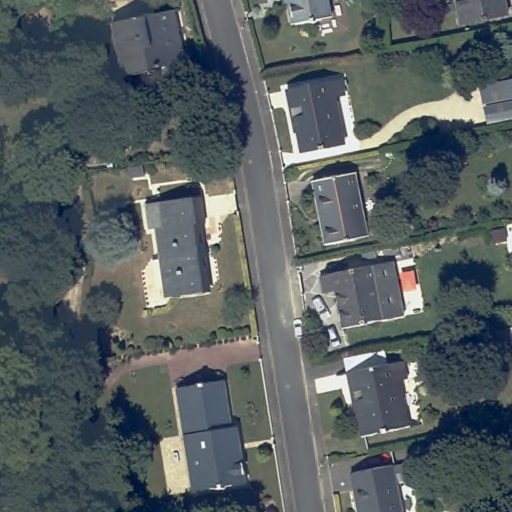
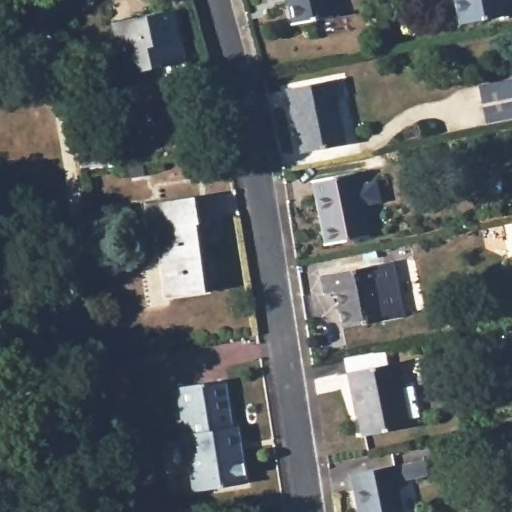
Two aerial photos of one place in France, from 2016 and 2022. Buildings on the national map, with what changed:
unchanged [(294,22),(289,0),(328,0),(331,15),(294,22)]
unchanged [(460,21),(456,0),(505,0),(508,11),(460,21)]
unchanged [(185,74),(162,80),(159,66),(124,74),(114,22),(172,10),(178,40),(182,62),(185,74)]
unchanged [(342,79),(345,95),(335,96),(344,144),(302,152),(298,132),(296,133),(288,89),(342,79)]
unchanged [(512,97),(483,103),(480,86),(512,81),(512,97)]
unchanged [(512,115),(487,120),(484,107),(512,102),(512,115)]
unchanged [(131,155),(132,163),(118,164),(117,156),(131,155)]
unchanged [(142,169),(142,176),(129,177),(128,170),(142,169)]
unchanged [(355,174),(367,236),(326,244),(314,181),(355,174)]
unchanged [(156,228),(149,229),(146,203),(201,197),(204,222),(200,223),(209,290),(165,296),(156,228)]
unchanged [(506,230),(508,238),(493,242),(491,232),(506,230)]
unchanged [(393,261),(404,316),(343,328),(332,274),(393,261)]
unchanged [(354,404),(352,405),(346,373),(351,372),(348,358),(375,352),(378,367),(404,362),(407,378),(399,380),(408,426),(366,434),(360,435),(354,404)]
unchanged [(102,361),(104,376),(86,379),(84,364),(102,361)]
unchanged [(177,387),(223,380),(231,427),(237,426),(244,483),(193,491),(177,387)]
unchanged [(392,465),(402,512),(358,512),(350,473),(392,465)]

